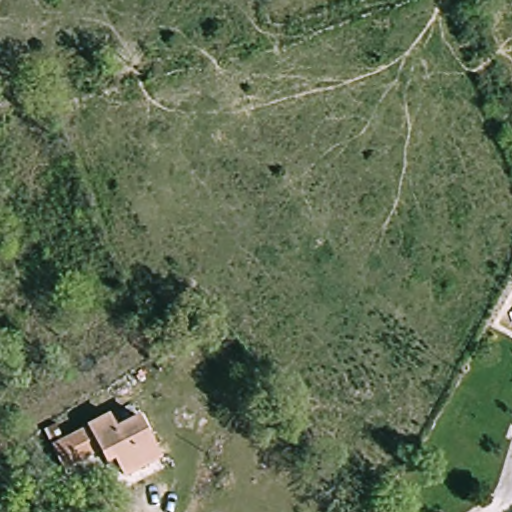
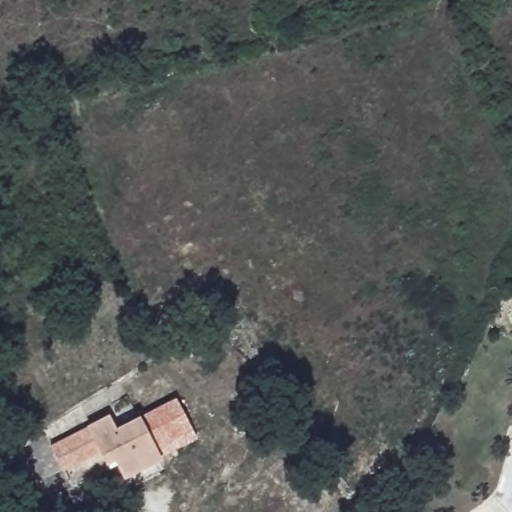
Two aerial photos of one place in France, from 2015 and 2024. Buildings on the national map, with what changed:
new [(138,417),(175,397),(196,438),(160,457),(138,417)]
unchanged [(62,471),(50,447),(110,415),(116,428),(138,417),(160,457),(123,477),(114,459),(106,463),(100,451),(62,471)]

